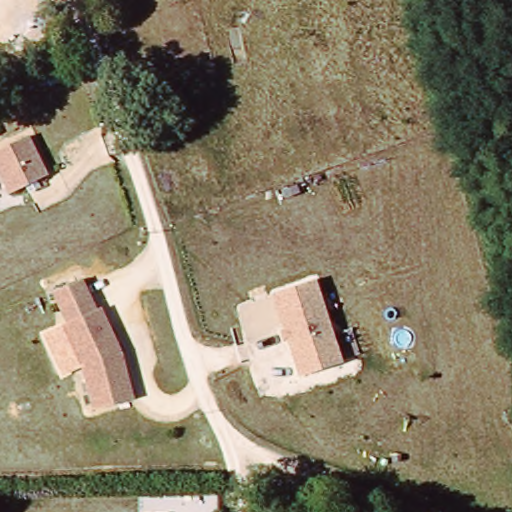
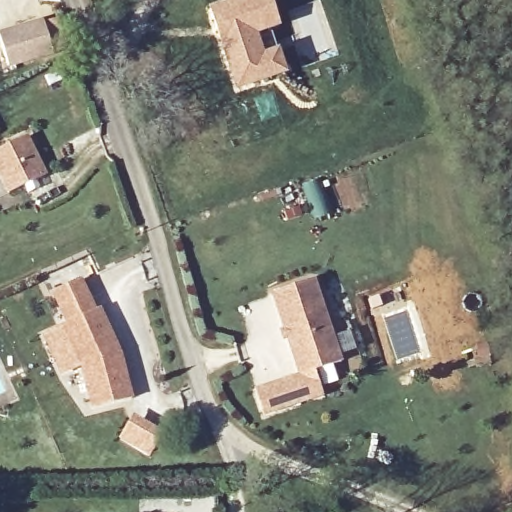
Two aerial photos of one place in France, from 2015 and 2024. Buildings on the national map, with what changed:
new [(287,74),(235,90),(208,8),(231,0),(270,0),(279,26),(255,34),(262,54),(277,49),(287,74)]
new [(55,56),(10,70),(0,41),(0,31),(43,17),(55,56)]
unchanged [(51,170),(7,194),(0,177),(0,147),(29,134),(51,170)]
unchanged [(84,275),(96,304),(101,302),(125,356),(136,400),(91,411),(84,369),(59,325),(65,321),(50,292),(84,275)]
unchanged [(343,362),(299,376),(272,294),(314,279),(343,362)]
unchanged [(60,375),(42,332),(59,325),(82,365),(60,375)]

